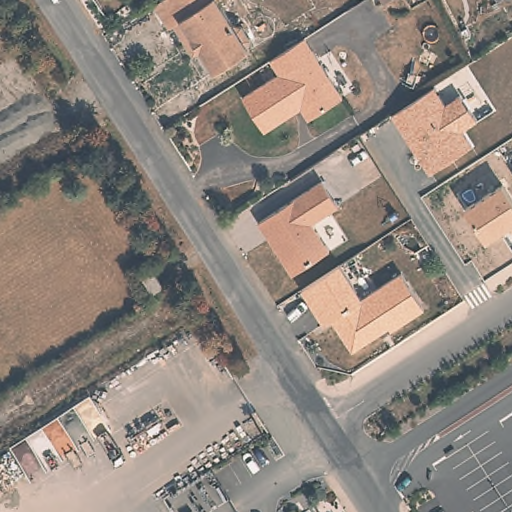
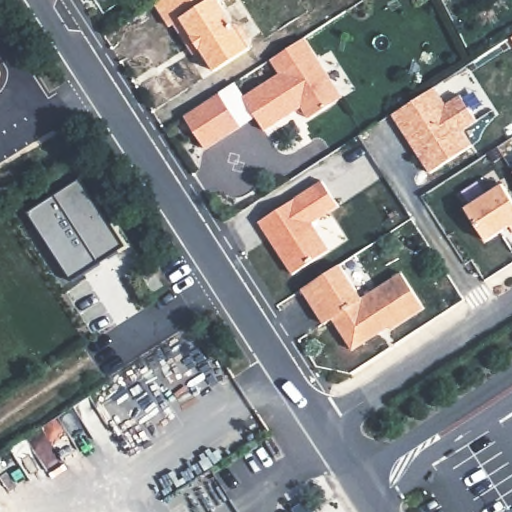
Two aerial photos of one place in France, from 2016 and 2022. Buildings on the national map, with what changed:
unchanged [(166,25),(152,4),(157,0),(215,0),(230,24),(239,25),(245,34),(247,38),(245,47),(247,49),(212,71),(205,60),(197,49),(190,54),(170,23),(166,25)]
unchanged [(267,130),(245,96),(282,73),(272,59),(290,48),(306,38),(344,96),(311,118),(303,106),(295,112),(267,130)]
unchanged [(435,87),(446,104),(460,95),(477,123),(462,131),(472,145),(427,173),(391,116),(435,87)]
new [(220,93),(242,127),(206,150),(184,116),(220,93)]
new [(27,213),(81,179),(122,244),(71,279),(27,213)]
unchanged [(322,184),(338,209),(312,226),(330,254),(292,277),(259,224),(322,184)]
unchanged [(499,184),(512,204),(512,229),(511,228),(487,243),(464,209),(499,184)]
unchanged [(340,267),(361,301),(401,275),(423,311),(391,332),(388,329),(352,352),(332,320),(323,326),(302,291),(340,267)]

